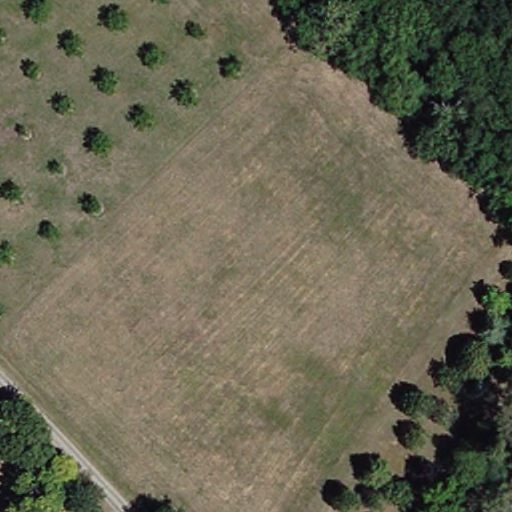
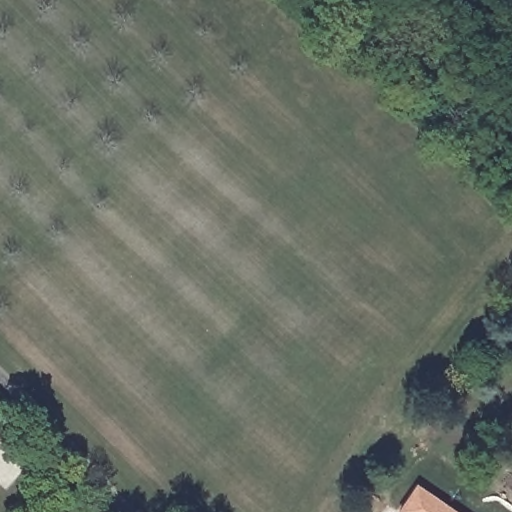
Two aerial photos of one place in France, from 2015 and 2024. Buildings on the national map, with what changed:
new [(415,484),(455,512),(397,512),(415,484)]

